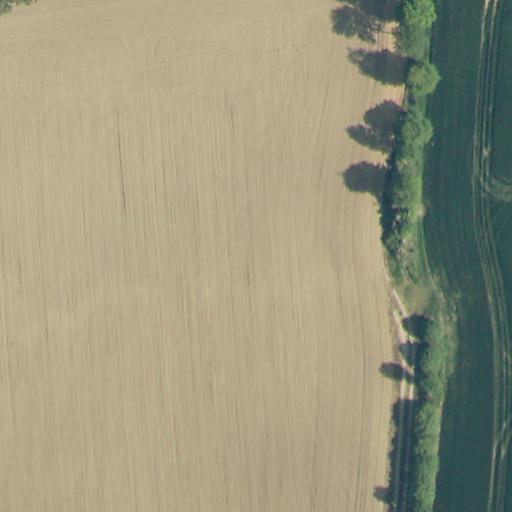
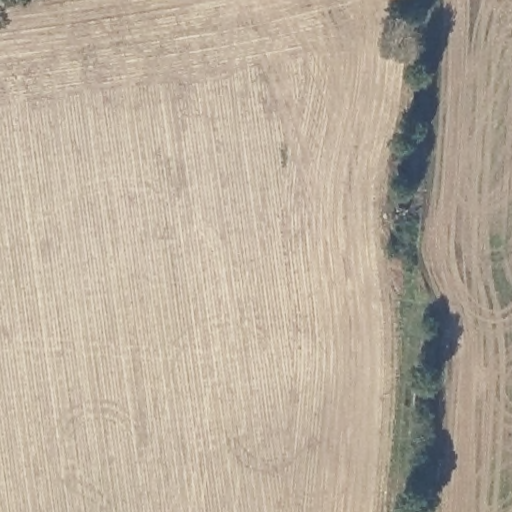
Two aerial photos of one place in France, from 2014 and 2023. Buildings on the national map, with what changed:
[]

